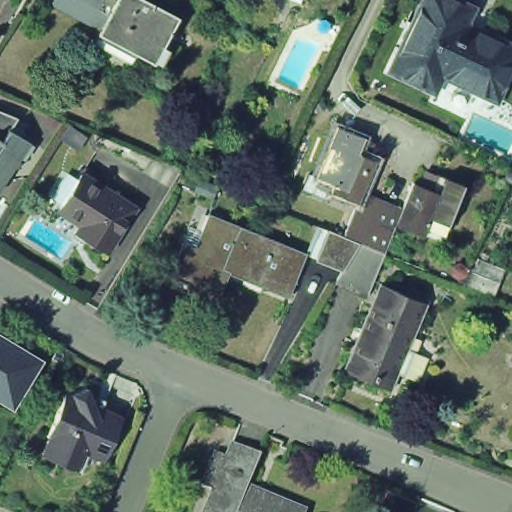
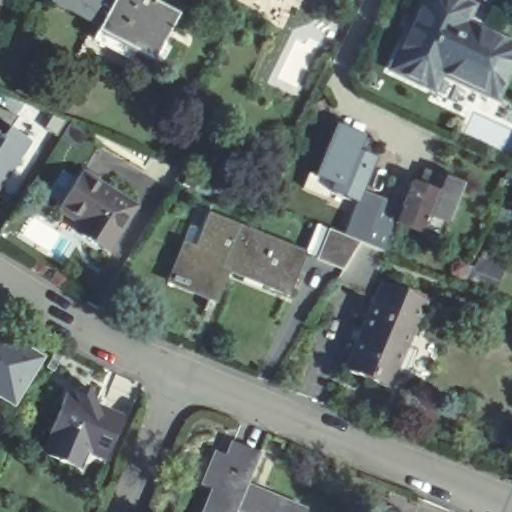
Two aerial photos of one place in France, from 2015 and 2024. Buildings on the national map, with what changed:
unchanged [(105,0),(109,2),(110,0),(136,0),(172,20),(147,66),(90,36),(93,30),(45,5),(47,0),(105,0)]
unchanged [(262,0),(277,0),(275,6),(262,0)]
unchanged [(440,0),(467,13),(460,29),(512,54),(512,57),(490,102),(436,77),(428,94),(386,74),(421,0),(440,0)]
unchanged [(18,120),(10,132),(30,145),(19,162),(19,164),(20,169),(13,171),(0,191),(0,113),(18,120)]
unchanged [(335,128),(361,140),(354,155),(371,162),(358,193),(357,197),(354,205),(328,194),(331,185),(314,177),(335,128)]
unchanged [(71,184),(78,174),(130,211),(100,254),(74,236),(79,227),(53,209),(71,184)]
unchanged [(409,182),(428,190),(434,175),(460,185),(440,235),(423,229),(420,236),(395,226),(393,225),(398,212),(409,182)]
unchanged [(349,353),(338,350),(363,295),(361,295),(362,292),(333,282),(339,272),(338,270),(315,260),(327,232),(340,237),(354,205),(357,197),(398,212),(393,225),(381,254),(368,286),(376,289),(378,286),(423,305),(404,350),(406,351),(410,353),(402,372),(400,377),(394,374),(387,390),(385,389),(341,371),(349,353)]
unchanged [(170,277),(171,277),(184,246),(177,243),(178,241),(193,248),(199,233),(196,232),(198,230),(204,232),(211,218),(203,216),(205,213),(236,227),(234,232),(265,245),(268,240),(303,255),(303,256),(298,254),(291,268),(296,271),(287,293),(272,287),(270,292),(264,290),(266,284),(227,268),(226,271),(219,268),(208,296),(184,286),(183,288),(168,281),(170,277)]
unchanged [(478,257),(507,269),(495,297),(467,286),(478,257)]
unchanged [(42,358),(12,408),(0,402),(0,334),(42,358)]
unchanged [(33,453),(35,448),(41,435),(39,433),(56,392),(62,394),(63,392),(77,387),(81,397),(94,402),(92,407),(111,416),(94,457),(80,452),(72,469),(33,453)]
unchanged [(206,488),(196,485),(210,451),(221,456),(227,441),(254,452),(242,483),(301,509),(299,512),(238,512),(195,512),(206,488)]

